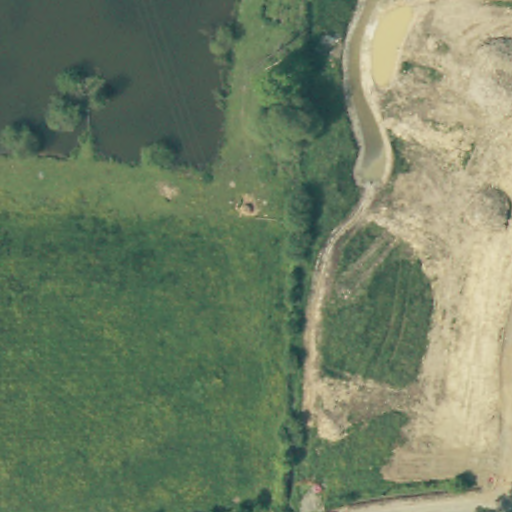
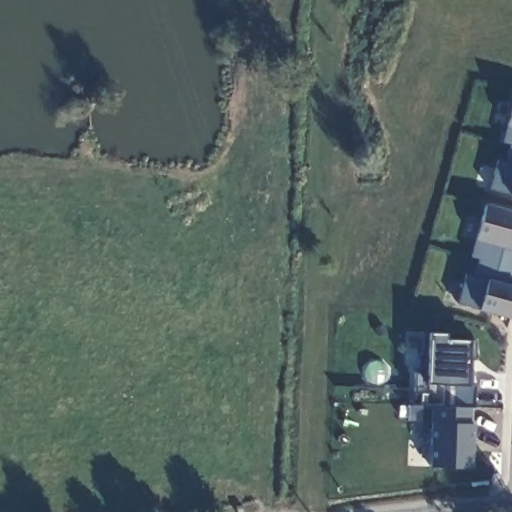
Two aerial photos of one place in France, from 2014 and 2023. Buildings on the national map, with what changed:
new [(508,193),(487,188),(496,158),(503,159),(507,142),(501,141),(506,122),(512,100),(512,195),(508,193)]
new [(509,318),(475,308),(458,303),(465,272),(472,274),(476,258),(470,256),(474,239),(483,205),(512,213),(512,306),(509,318)]
new [(429,465),(432,406),(419,406),(420,392),(414,392),(414,370),(427,371),(429,333),(445,332),(444,340),(468,341),(474,341),(469,383),(473,384),(472,467),(429,465)]

